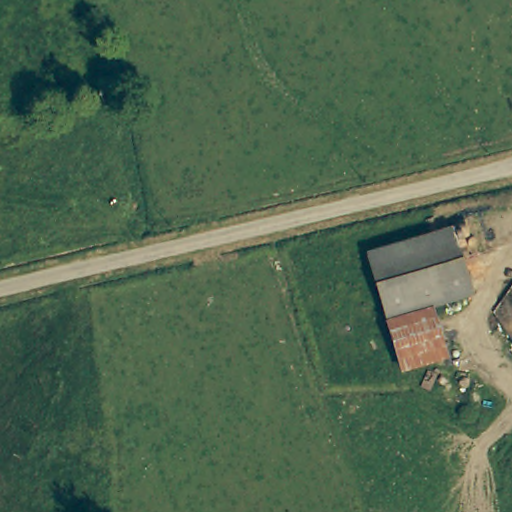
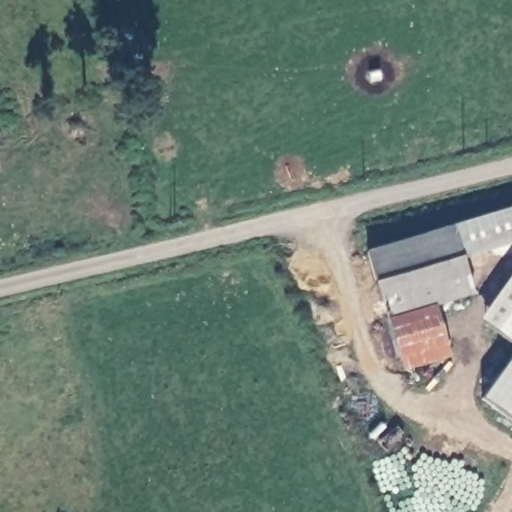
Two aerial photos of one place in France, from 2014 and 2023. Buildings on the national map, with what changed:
new [(451,226),(512,207),(512,246),(462,261),(451,226)]
unchanged [(369,245),(425,228),(450,221),(470,288),(432,299),(447,347),(403,360),(387,306),(369,245)]
new [(481,319),(512,277),(512,346),(481,319)]
new [(482,399),(512,361),(512,420),(482,399)]

